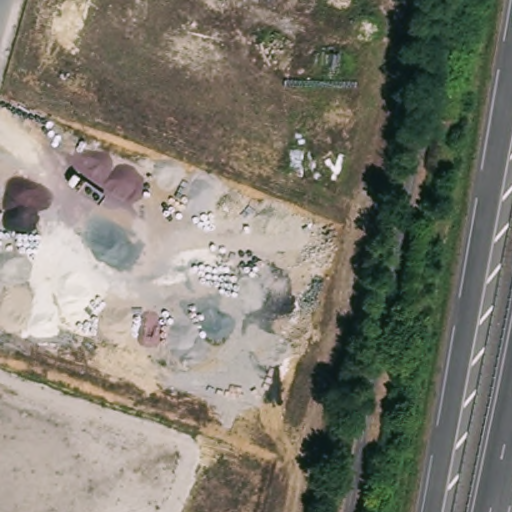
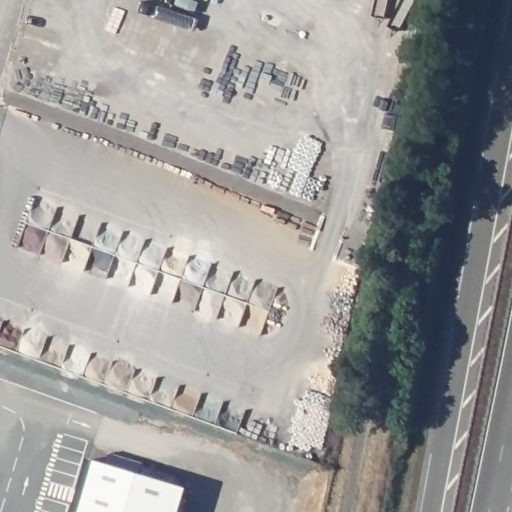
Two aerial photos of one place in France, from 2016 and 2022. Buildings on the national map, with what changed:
new [(88,460),(184,489),(177,512),(72,512),(88,460)]

